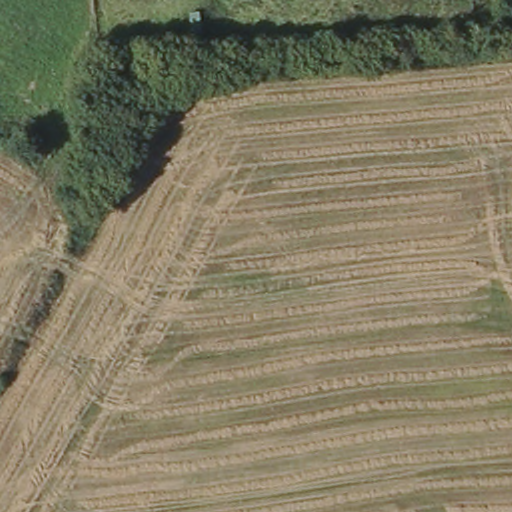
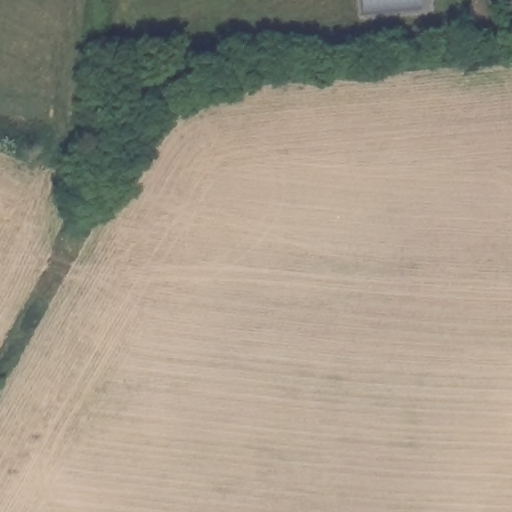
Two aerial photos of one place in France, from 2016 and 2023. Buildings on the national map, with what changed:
new [(360,0),(423,0),(424,11),(361,17),(360,0)]

